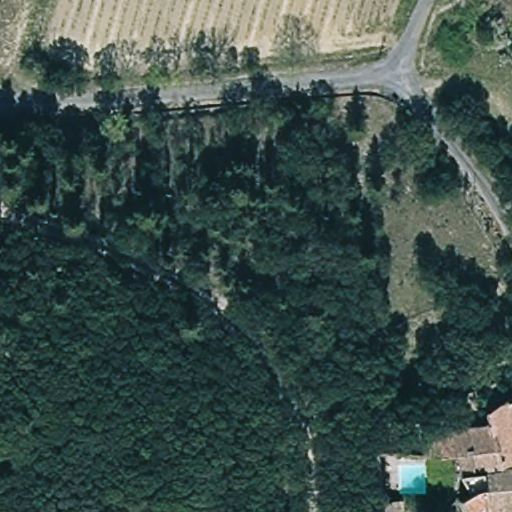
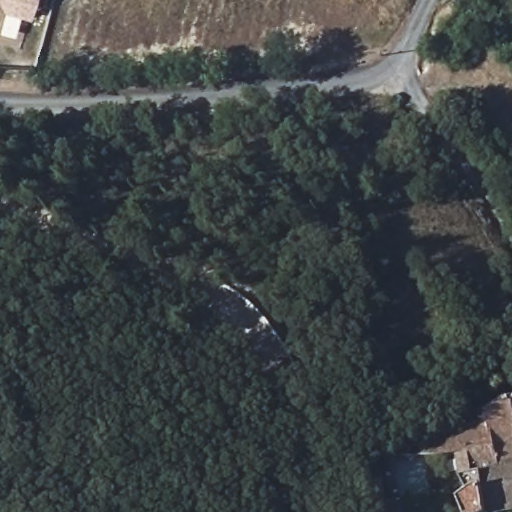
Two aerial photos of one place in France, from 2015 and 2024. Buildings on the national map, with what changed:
new [(28,19),(1,12),(0,18),(0,0),(34,0),(28,19)]
unchanged [(493,422),(492,418),(512,405),(512,510),(489,512),(465,512),(462,494),(475,492),(477,453),(447,462),(443,443),(442,440),(493,427),(493,422)]
unchanged [(403,504),(404,512),(382,512),(382,505),(403,504)]

